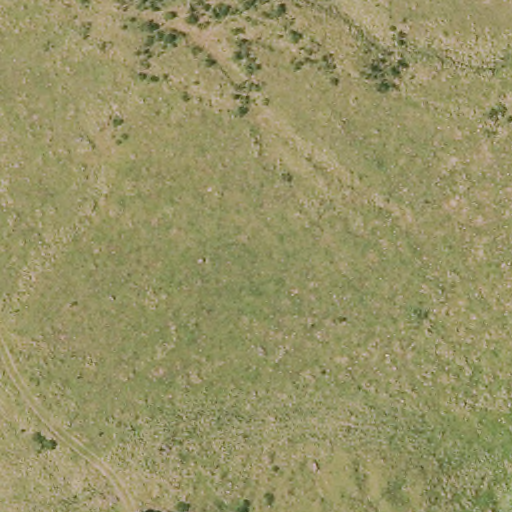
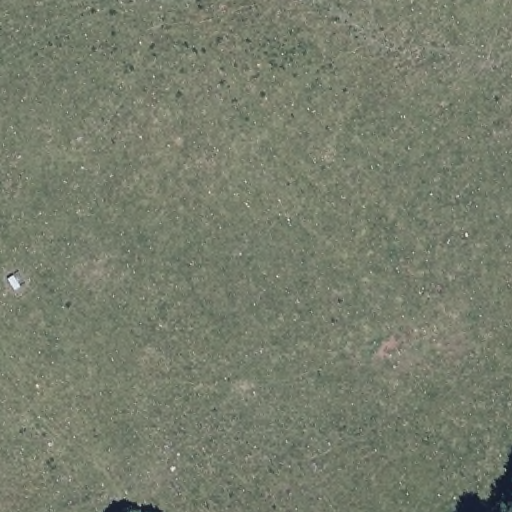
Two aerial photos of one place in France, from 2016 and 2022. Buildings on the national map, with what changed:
[]

